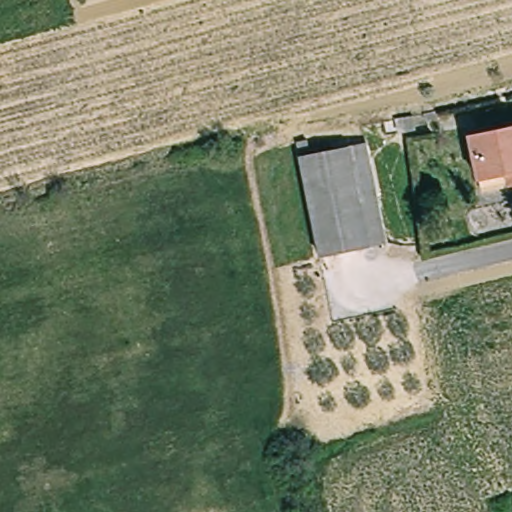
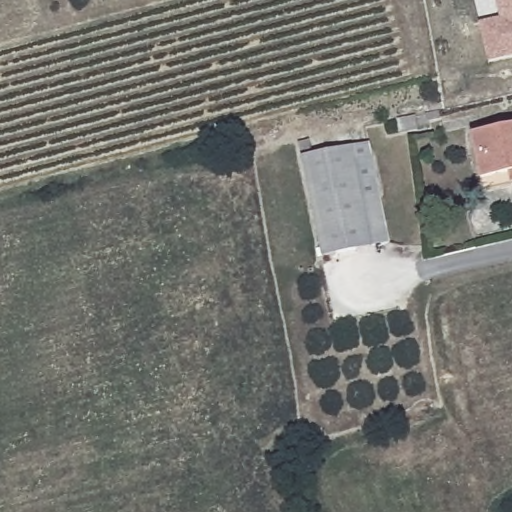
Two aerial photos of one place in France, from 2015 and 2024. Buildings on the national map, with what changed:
new [(488,64),(478,24),(499,19),(495,0),(512,0),(512,58),(488,64)]
unchanged [(480,171),(473,133),(512,126),(512,181),(483,186),(480,171)]
unchanged [(369,146),(388,242),(319,256),(301,160),(369,146)]

